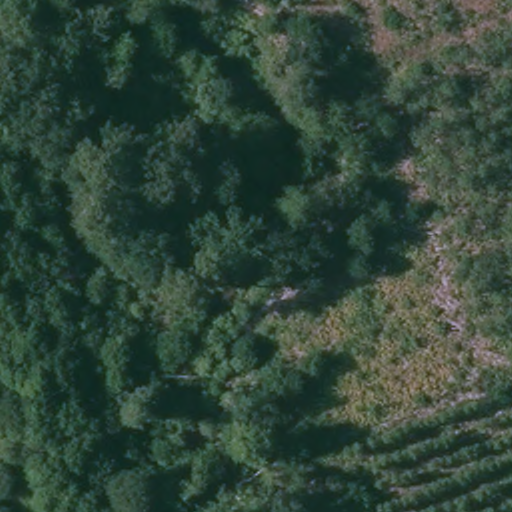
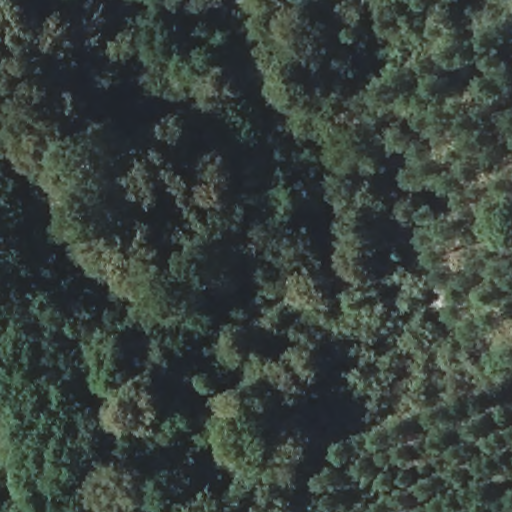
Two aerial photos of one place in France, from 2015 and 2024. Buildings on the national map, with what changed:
[]

